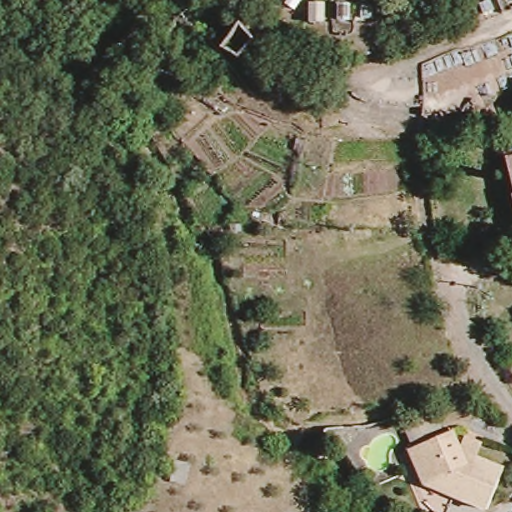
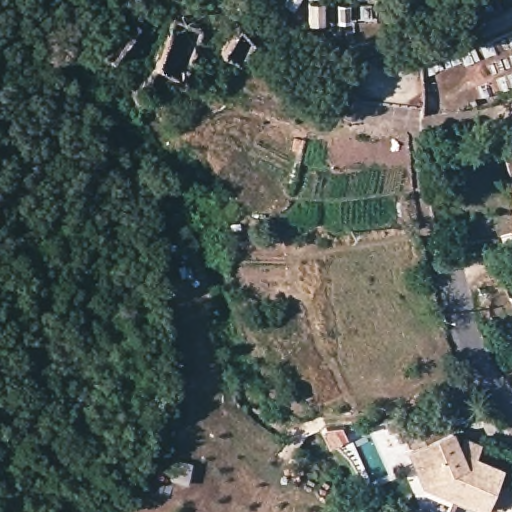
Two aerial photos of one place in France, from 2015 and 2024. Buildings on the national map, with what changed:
unchanged [(501,150),(512,148),(512,188),(501,150)]
unchanged [(452,434),(460,451),(466,439),(483,447),(477,460),(502,472),(482,512),(475,512),(453,503),(449,512),(424,512),(420,508),(415,490),(418,488),(407,448),(452,434)]

